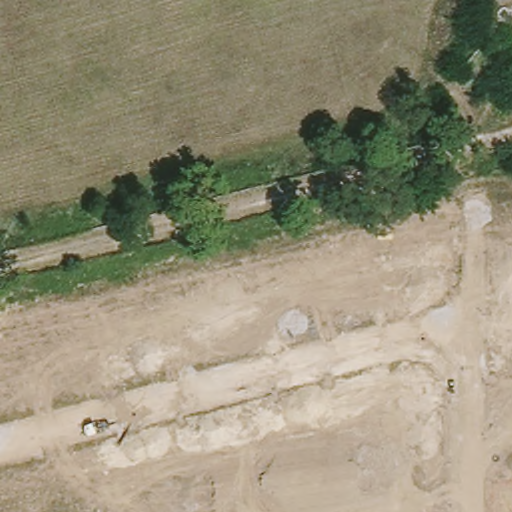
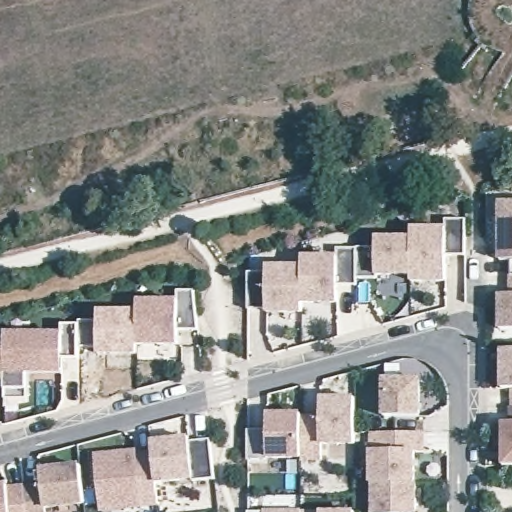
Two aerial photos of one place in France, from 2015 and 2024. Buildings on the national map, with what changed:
new [(498,260),(498,201),(512,201),(512,260),(498,260)]
new [(267,271),(267,266),(303,266),(303,256),(338,256),(337,247),(358,247),(358,246),(377,246),(376,237),(412,237),(412,228),(446,228),(446,218),(467,219),(467,255),(447,255),(447,280),(412,280),(412,274),(378,274),(378,277),(357,277),(357,285),(338,285),(339,301),(303,301),(303,311),(267,311),(267,309),(248,308),(248,271),(267,271)]
new [(496,294),(508,294),(509,276),(512,277),(512,332),(498,332),(496,294)]
new [(197,331),(176,331),(175,344),(135,343),(134,301),(172,301),(175,290),(192,292),(197,331)]
new [(135,343),(137,343),(136,355),(98,353),(98,349),(79,348),(79,323),(79,321),(99,322),(99,310),(134,310),(135,343)]
new [(6,334),(62,334),(62,323),(79,323),(79,357),(63,358),(63,370),(27,370),(27,397),(6,397),(6,334)]
new [(6,383),(0,383),(0,345),(6,345),(6,383)]
new [(511,387),(500,387),(500,349),(512,349),(512,407),(511,406),(511,387)]
new [(420,427),(381,428),(381,378),(419,379),(420,427)]
new [(318,415),(318,396),(352,397),(352,451),(319,451),(318,444),(298,445),(298,415),(318,415)]
new [(501,423),(507,423),(508,406),(512,407),(512,474),(500,475),(501,423)]
new [(298,415),(298,445),(299,457),(268,456),(247,455),(249,428),(267,427),(267,411),(298,412),(298,415)]
new [(428,452),(415,452),(416,482),(369,483),(369,449),(369,432),(426,432),(428,452)]
new [(189,436),(190,440),(211,438),(215,477),(194,480),(193,474),(156,477),(153,452),(152,440),(189,436)]
new [(137,450),(137,453),(153,452),(156,477),(159,505),(143,506),(144,511),(134,512),(100,512),(94,454),(137,450)]
new [(81,505),(42,509),(42,512),(24,512),(22,487),(38,485),(38,467),(77,463),(81,505)]
new [(24,512),(0,512),(0,483),(8,482),(8,485),(22,485),(22,487),(24,512)]
new [(420,512),(369,512),(369,483),(416,482),(420,512)]
new [(263,511),(263,508),(300,509),(301,511),(320,510),(354,510),(354,512),(248,512),(248,511),(263,511)]

